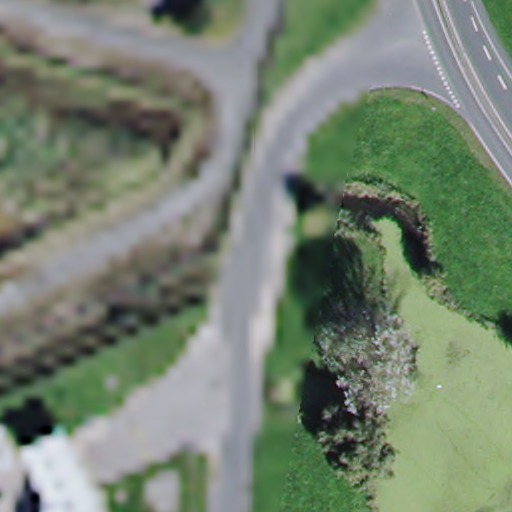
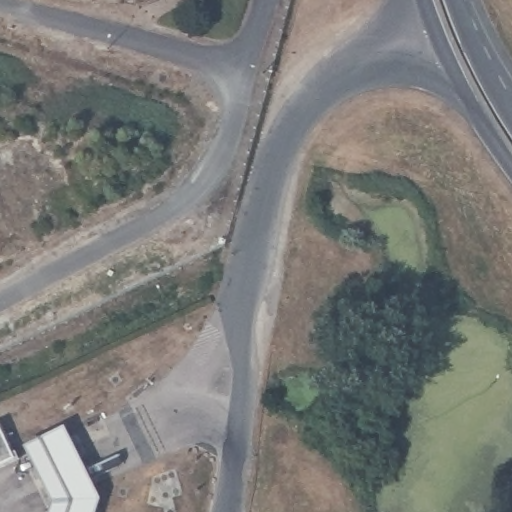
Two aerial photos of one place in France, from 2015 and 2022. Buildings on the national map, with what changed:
unchanged [(11,452),(0,458),(0,427),(11,452)]
new [(99,496),(93,512),(48,512),(52,499),(24,445),(64,427),(99,496)]

